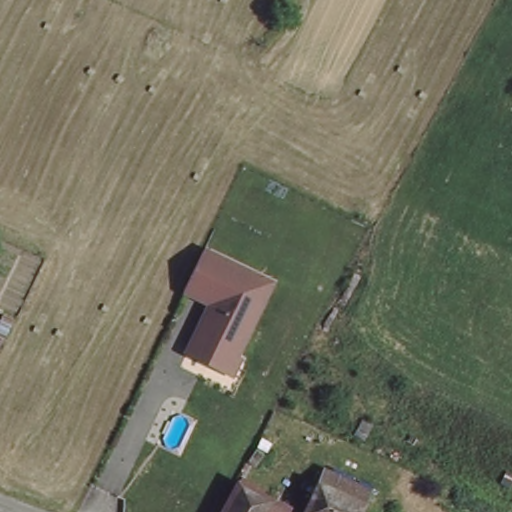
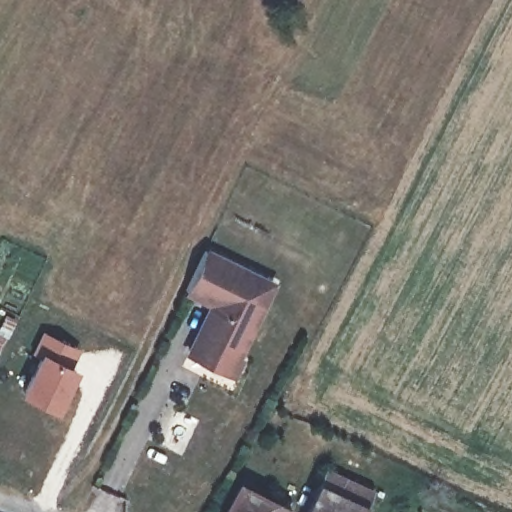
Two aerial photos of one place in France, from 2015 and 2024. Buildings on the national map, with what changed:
unchanged [(196,347),(218,300),(192,287),(211,246),(279,279),(241,355),(236,367),(216,357),(196,347)]
new [(37,355),(32,353),(43,330),(78,347),(72,365),(76,367),(55,413),(19,396),(37,355)]
unchanged [(279,512),(230,512),(245,485),(282,506),(279,512)]
unchanged [(362,512),(308,512),(319,490),(362,512)]

